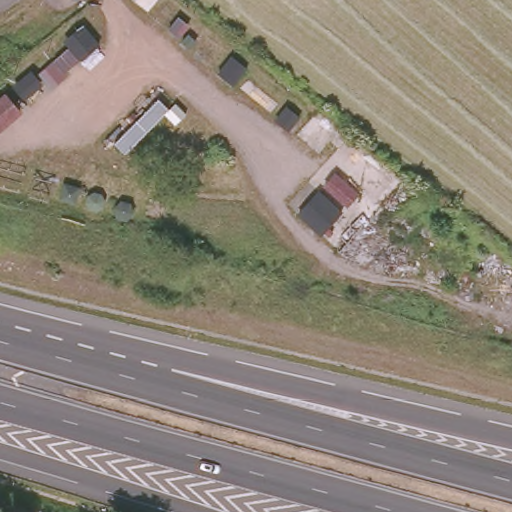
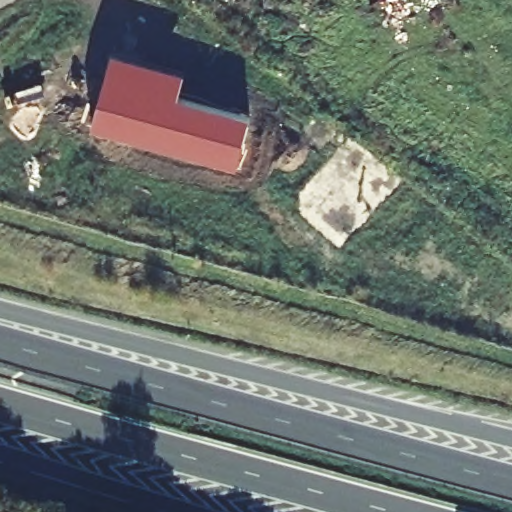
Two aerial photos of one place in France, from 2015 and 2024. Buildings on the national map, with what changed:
new [(178,96),(249,118),(236,169),(90,128),(110,51),(185,71),(178,96)]

